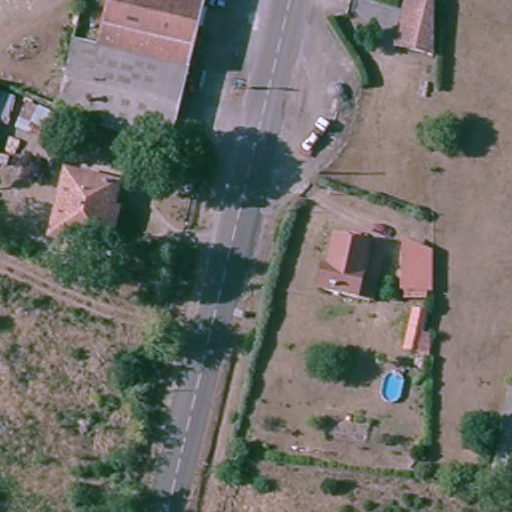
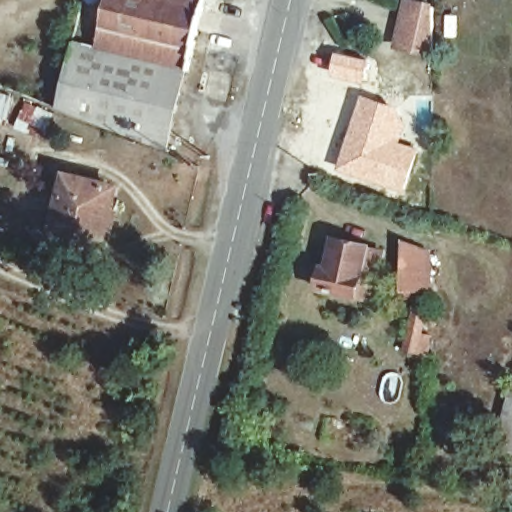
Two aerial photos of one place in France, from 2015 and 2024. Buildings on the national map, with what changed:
unchanged [(84,116),(111,0),(206,0),(175,139),(84,116)]
unchanged [(413,0),(426,4),(438,8),(427,51),(400,43),(411,10),(413,0)]
new [(336,52),(369,59),(362,84),(331,76),(336,52)]
unchanged [(7,125),(0,123),(0,93),(15,97),(7,125)]
new [(362,95),(408,115),(400,141),(419,148),(405,191),(338,169),(362,95)]
unchanged [(59,240),(68,180),(114,188),(114,211),(117,212),(118,225),(108,224),(106,249),(59,240)]
unchanged [(363,302),(353,299),(321,294),(326,268),(331,269),(336,239),(363,244),(372,245),(363,302)]
unchanged [(417,307),(416,287),(405,289),(405,242),(432,252),(435,307),(417,307)]
unchanged [(406,307),(418,309),(414,339),(402,337),(405,318),(406,307)]
unchanged [(512,455),(508,470),(493,467),(498,449),(512,385),(512,455)]

